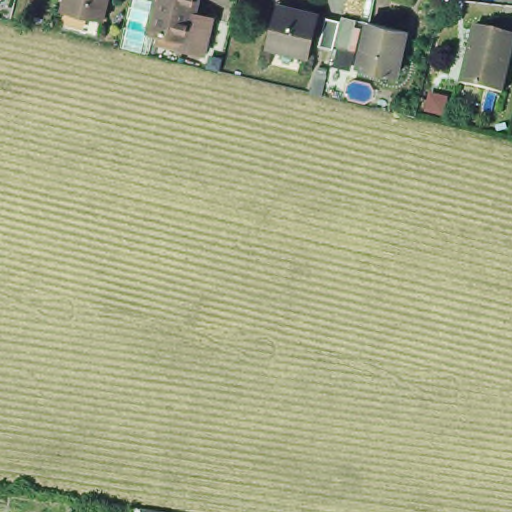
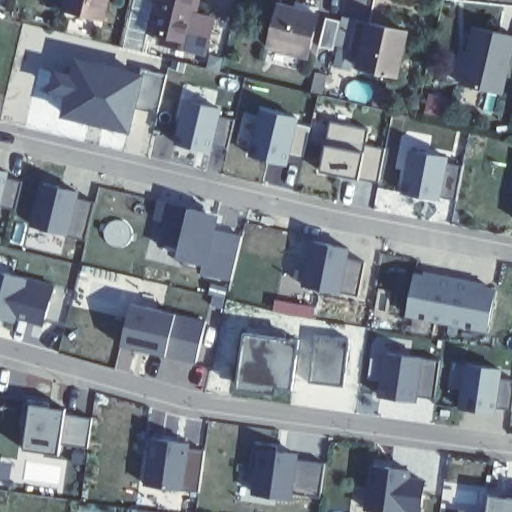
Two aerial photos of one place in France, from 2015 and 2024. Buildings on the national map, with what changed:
unchanged [(104,19),(62,10),(64,0),(108,0),(104,19)]
unchanged [(199,10),(194,38),(155,30),(147,29),(152,0),(201,0),(199,10)]
unchanged [(312,19),(302,59),(262,49),(272,9),(312,19)]
unchanged [(215,14),(205,56),(152,44),(155,30),(194,38),(199,10),(215,14)]
unchanged [(334,16),(327,45),(314,42),(320,14),(334,16)]
unchanged [(405,27),(395,70),(359,62),(370,19),(405,27)]
unchanged [(512,39),(512,61),(504,95),(461,84),(475,30),(512,39)]
new [(143,64),(132,131),(55,119),(66,45),(143,64)]
new [(225,107),(215,149),(170,144),(177,98),(225,107)]
new [(300,117),(292,166),(245,157),(252,110),(300,117)]
new [(376,127),(374,145),(390,148),(387,185),(316,175),(325,117),(376,127)]
new [(450,154),(443,200),(399,195),(407,146),(450,154)]
new [(4,175),(20,179),(16,207),(0,203),(0,163),(5,164),(4,175)]
new [(95,187),(87,237),(30,229),(37,176),(95,187)]
new [(244,217),(230,280),(175,270),(184,205),(244,217)]
new [(359,250),(355,292),(306,282),(312,236),(359,250)]
new [(47,327),(0,316),(0,267),(60,282),(47,327)]
new [(485,277),(472,335),(403,322),(409,270),(485,277)]
new [(205,315),(200,364),(124,347),(130,295),(205,315)]
new [(296,320),(289,393),(230,386),(246,318),(296,320)]
new [(351,327),(340,389),(309,382),(319,329),(351,327)]
new [(440,356),(438,402),(374,396),(383,346),(440,356)]
new [(502,365),(494,410),(455,408),(457,362),(502,365)]
new [(94,408),(81,459),(20,447),(27,399),(94,408)]
new [(189,433),(184,492),(143,489),(145,433),(189,433)]
new [(329,447),(324,505),(249,496),(252,438),(329,447)]
new [(422,512),(366,512),(369,459),(422,462),(422,512)]
new [(484,512),(486,495),(512,496),(512,512),(484,512)]

